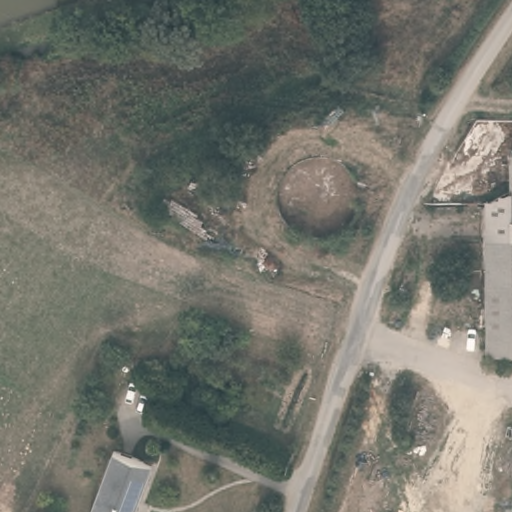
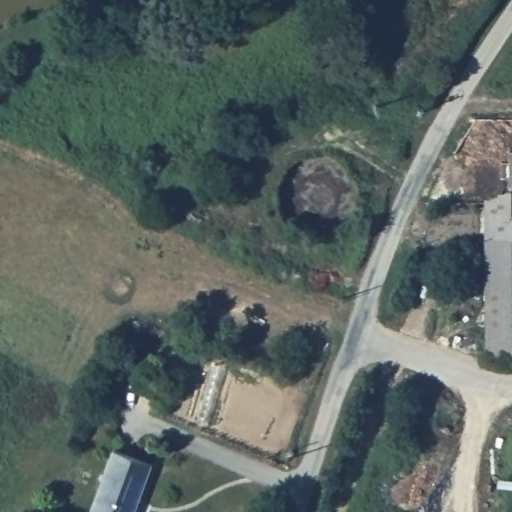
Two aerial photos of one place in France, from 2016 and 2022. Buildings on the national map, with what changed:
unchanged [(509,192),(509,156),(512,156),(512,360),(488,361),(487,243),(486,211),(509,192)]
unchanged [(147,466),(132,512),(95,512),(115,455),(147,466)]

